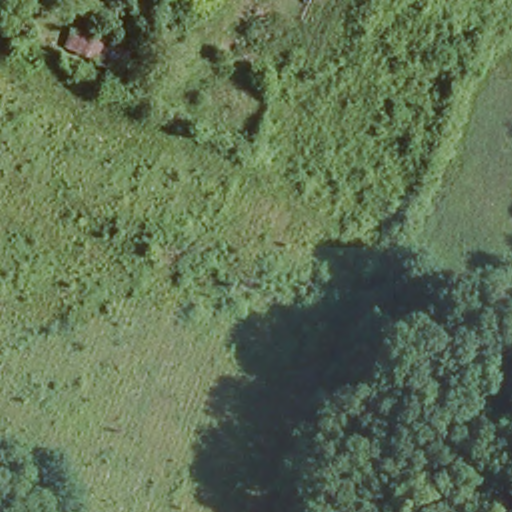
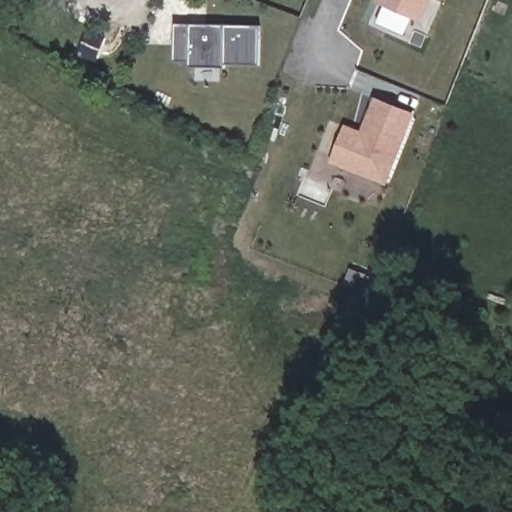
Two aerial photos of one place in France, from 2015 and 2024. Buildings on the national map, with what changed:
new [(117,0),(124,0),(123,3),(117,0)]
demolished [(222,47),(240,0),(276,0),(255,59),(222,47)]
new [(413,19),(408,29),(380,16),(384,6),(376,2),(376,0),(431,0),(421,23),(413,19)]
new [(261,65),(226,65),(226,68),(188,67),(188,61),(173,61),(175,23),(262,25),(261,65)]
new [(330,163),(346,124),(361,130),(376,96),(417,113),(388,187),(330,163)]

